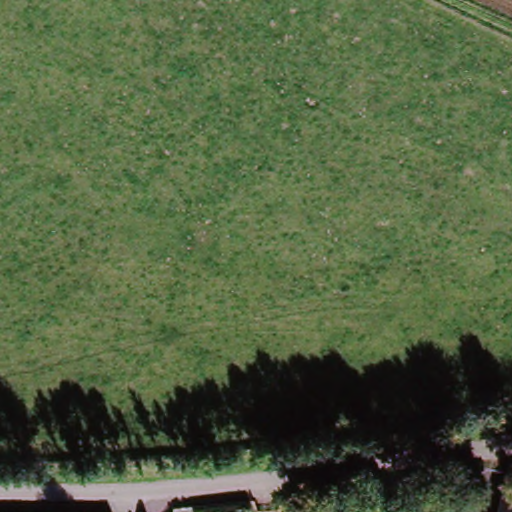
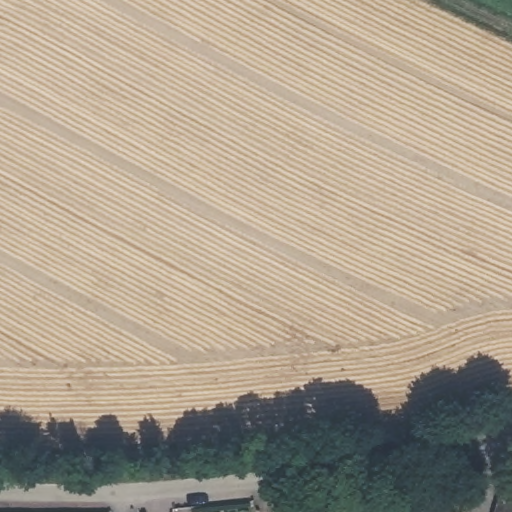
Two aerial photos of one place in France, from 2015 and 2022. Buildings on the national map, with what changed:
unchanged [(512,485),(512,512),(502,512),(511,485),(512,485)]

